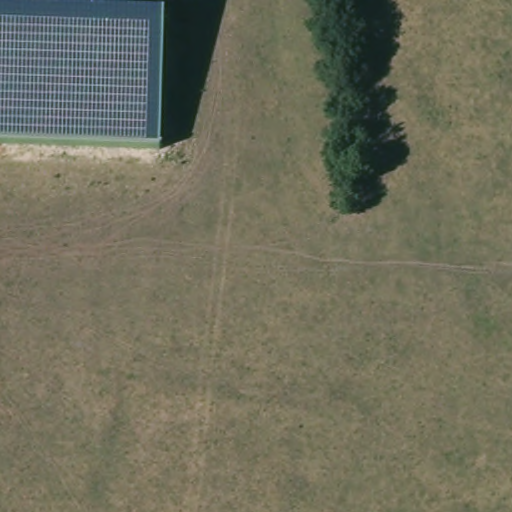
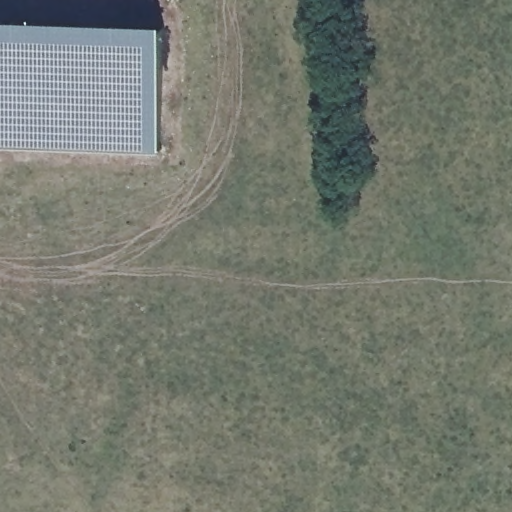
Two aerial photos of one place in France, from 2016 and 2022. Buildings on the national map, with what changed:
unchanged [(0,143),(0,18),(164,22),(162,148),(0,143)]

